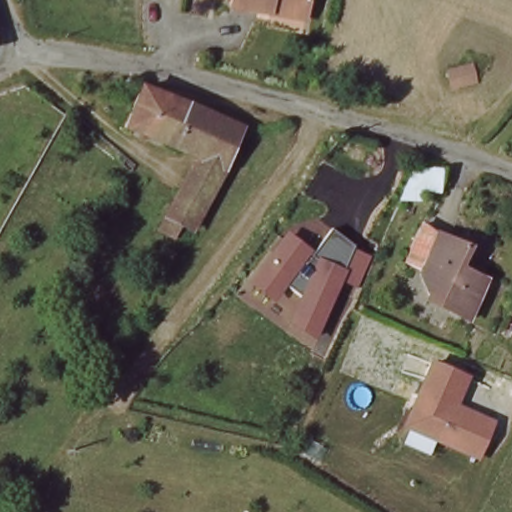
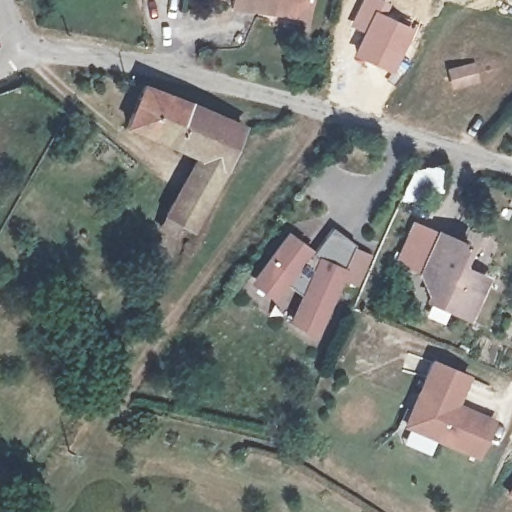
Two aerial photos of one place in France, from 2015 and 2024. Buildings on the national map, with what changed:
unchanged [(273,9),(233,2),(234,0),(311,0),(309,9),(309,15),(273,9)]
new [(361,0),(382,0),(391,4),(386,15),(414,27),(394,75),(353,57),(363,32),(349,25),(361,0)]
unchanged [(143,85),(243,124),(201,226),(189,221),(180,239),(162,232),(196,155),(126,122),(143,85)]
unchanged [(316,338),(286,327),(299,297),(288,290),(271,304),(246,285),(290,235),(312,253),(334,227),(357,247),(316,338)]
unchanged [(463,268),(493,282),(474,318),(436,301),(423,271),(439,231),(474,245),(463,268)]
unchanged [(479,460),(404,430),(433,362),(471,376),(458,405),(494,420),(479,460)]
new [(504,495),(512,484),(512,501),(504,495)]

